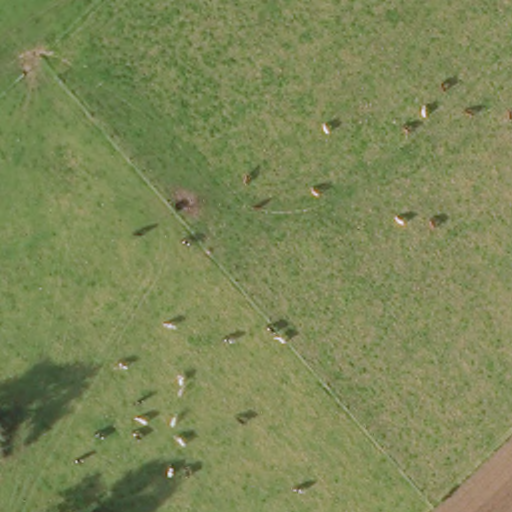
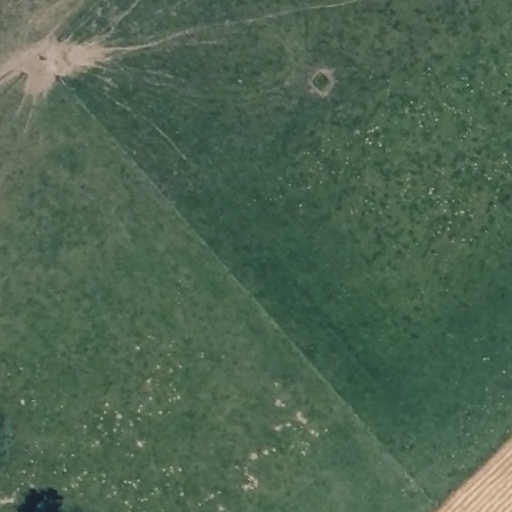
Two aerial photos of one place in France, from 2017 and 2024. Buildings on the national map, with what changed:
[]

